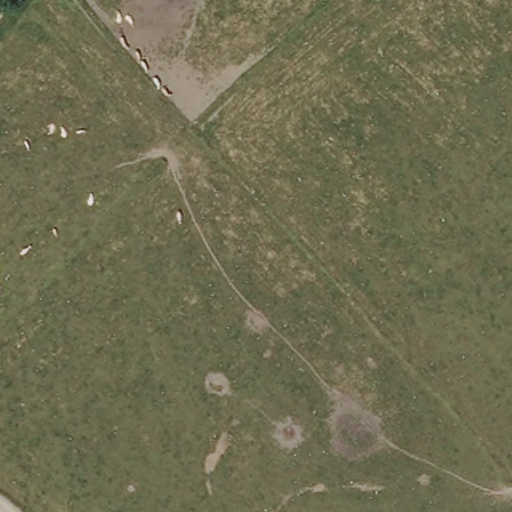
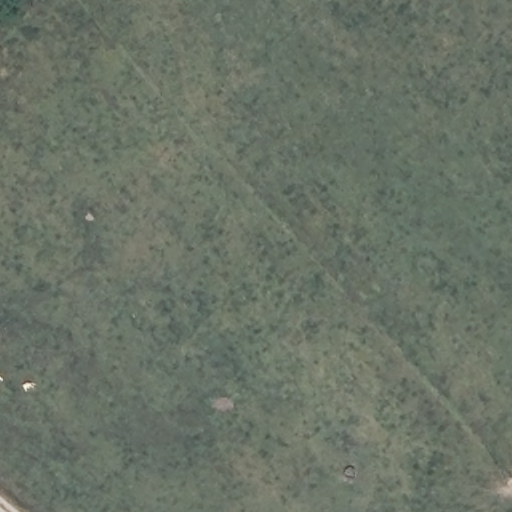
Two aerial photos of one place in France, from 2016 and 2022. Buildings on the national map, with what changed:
[]

